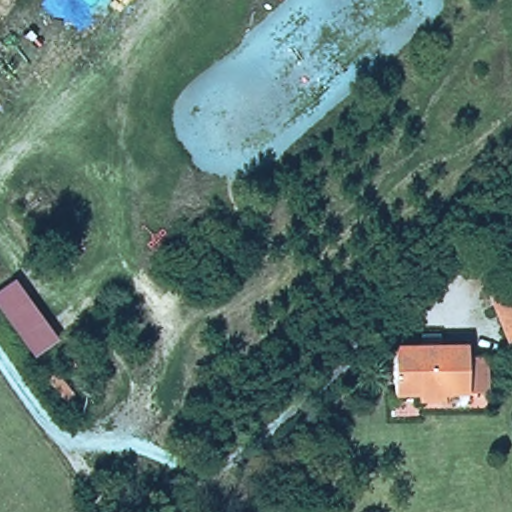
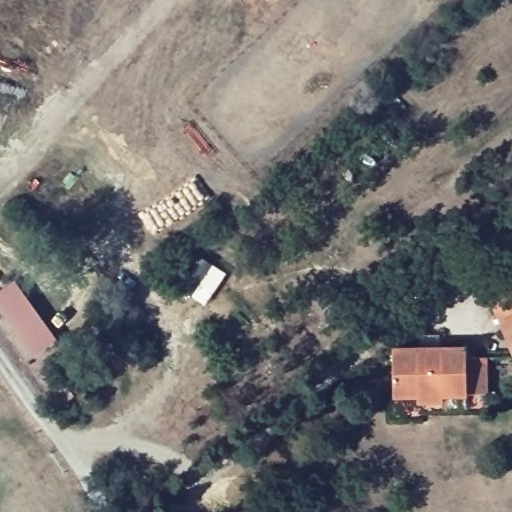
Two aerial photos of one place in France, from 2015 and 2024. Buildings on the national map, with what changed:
unchanged [(60,342),(33,361),(0,315),(0,289),(13,280),(60,342)]
unchanged [(512,283),(512,363),(483,296),(512,283)]
unchanged [(485,402),(444,403),(443,408),(420,408),(420,402),(390,402),(390,354),(463,356),(464,367),(485,368),(485,402)]

